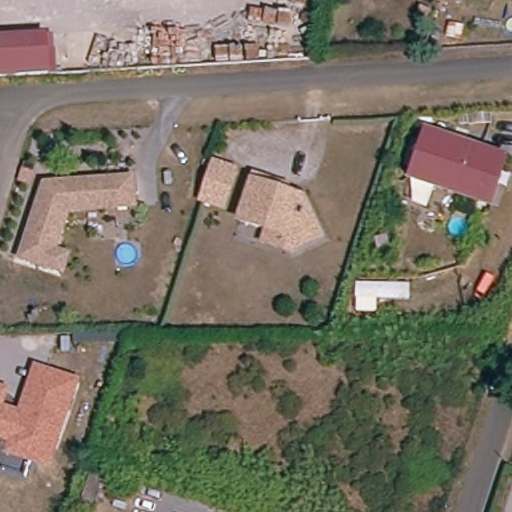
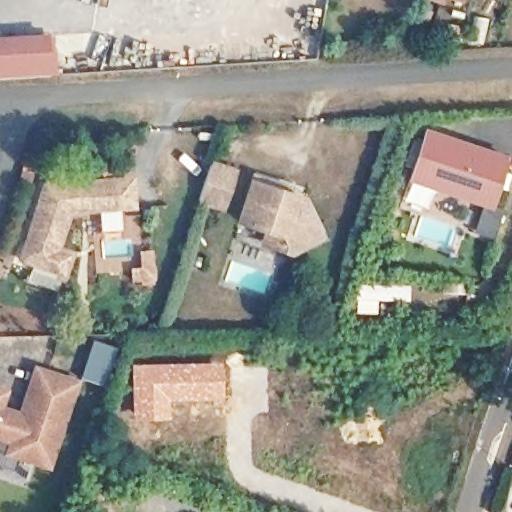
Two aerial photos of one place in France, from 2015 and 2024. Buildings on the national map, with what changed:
unchanged [(439,7),(438,11),(438,12),(419,5),(421,0),(466,0),(462,14),(439,7)]
unchanged [(0,41),(49,41),(50,78),(0,78),(0,41)]
unchanged [(506,153),(502,165),(487,201),(406,169),(409,158),(424,121),(506,153)]
unchanged [(208,179),(214,161),(238,169),(225,205),(202,197),(208,179)]
unchanged [(265,223),(237,213),(252,170),(284,181),(282,187),(304,194),(320,231),(289,245),(261,236),(265,223)]
unchanged [(69,211),(56,251),(69,255),(64,273),(21,258),(46,184),(132,180),(134,208),(69,211)]
new [(139,267),(139,250),(154,249),(155,287),(131,287),(129,267),(139,267)]
new [(224,361),(224,400),(169,401),(169,419),(131,420),(129,363),(224,361)]
unchanged [(4,405),(18,409),(34,362),(80,379),(50,470),(0,453),(0,383),(9,386),(4,405)]
unchanged [(106,493),(99,512),(83,512),(91,488),(106,493)]

